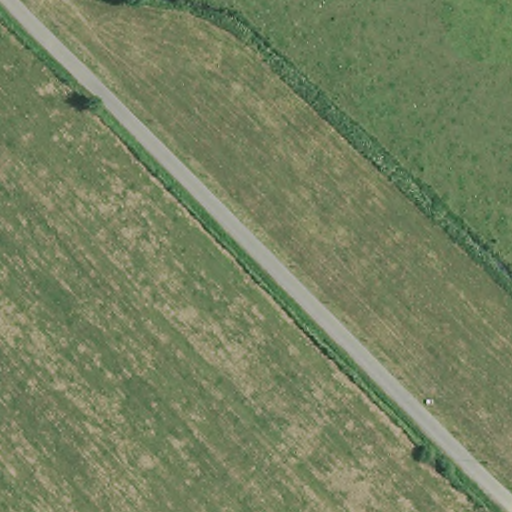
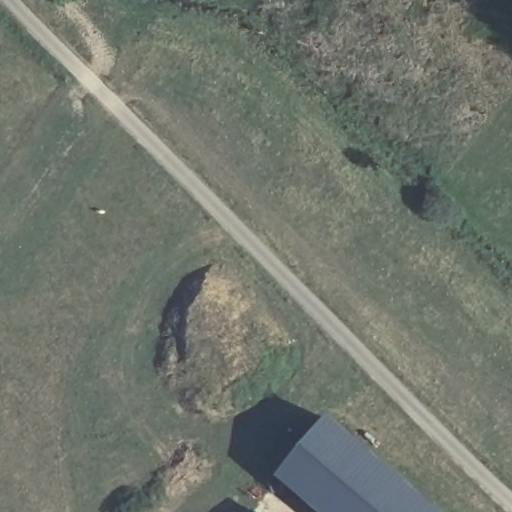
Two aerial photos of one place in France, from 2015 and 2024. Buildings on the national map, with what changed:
new [(329,415),(443,512),(321,512),(280,476),(329,415)]

